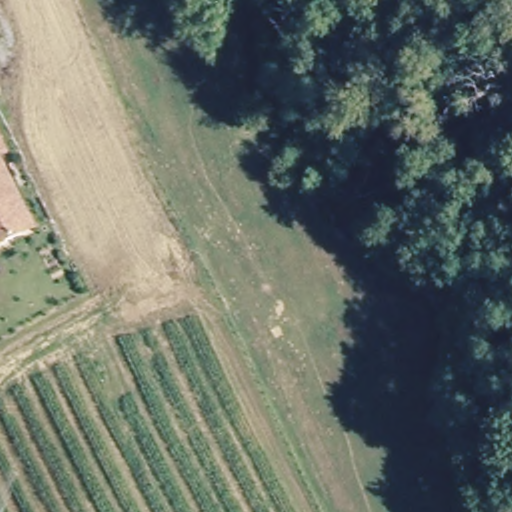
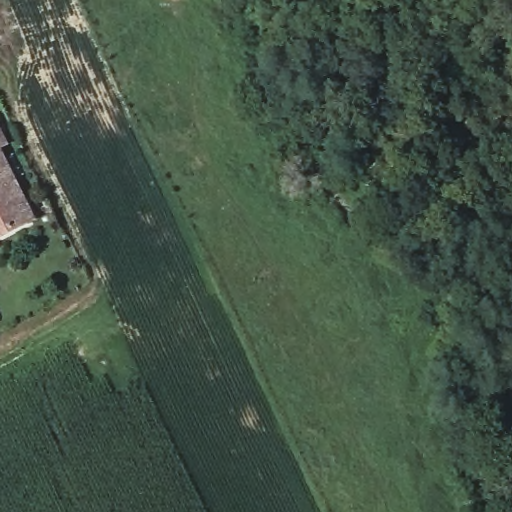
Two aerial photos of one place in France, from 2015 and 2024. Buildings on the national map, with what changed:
unchanged [(0,146),(0,140),(2,145),(0,146)]
unchanged [(32,220),(21,225),(0,236),(0,160),(22,201),(32,220)]

